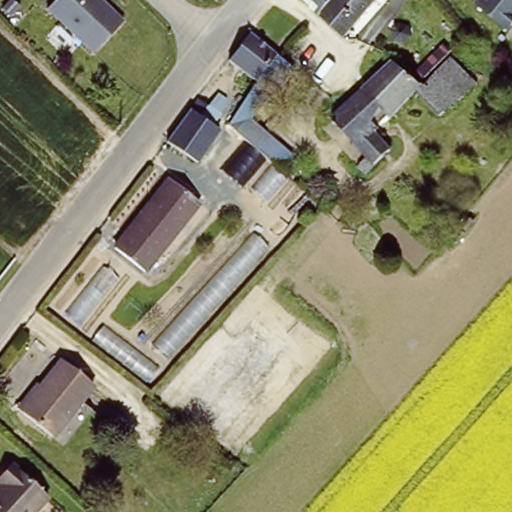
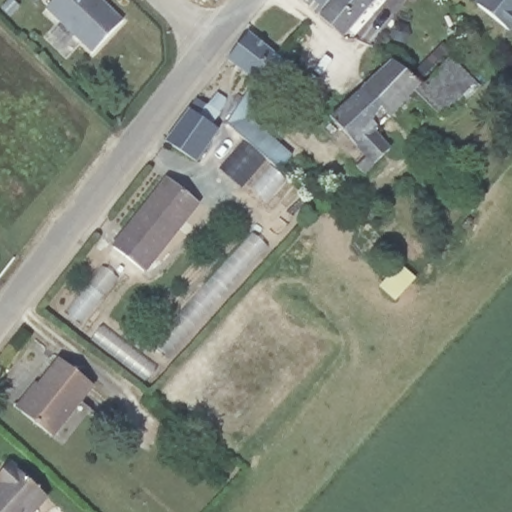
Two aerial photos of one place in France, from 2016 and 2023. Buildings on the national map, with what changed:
unchanged [(92,57),(46,12),(58,0),(92,0),(120,27),(92,57)]
unchanged [(216,0),(215,2),(213,0),(216,0)]
unchanged [(299,0),(320,0),(310,11),(299,0)]
unchanged [(360,7),(336,34),(315,14),(327,0),(380,0),(367,14),(360,7)]
unchanged [(477,10),(484,0),(512,0),(512,35),(510,37),(477,10)]
unchanged [(254,83),(230,63),(253,37),(275,56),(254,83)]
unchanged [(230,126),(242,97),(254,83),(275,56),(294,71),(242,136),(230,126)]
unchanged [(420,89),(380,124),(397,144),(370,167),(363,160),(372,152),(337,112),(395,56),(422,84),(450,56),(460,67),(476,84),(465,94),(442,114),(420,89)]
unchanged [(209,106),(203,115),(222,127),(200,164),(190,156),(170,142),(199,100),(209,106)]
unchanged [(292,156),(280,169),(242,136),(252,124),(292,156)]
unchanged [(202,205),(149,271),(115,242),(167,177),(202,205)]
unchanged [(22,415),(15,407),(39,378),(47,386),(67,365),(97,391),(51,441),(22,415)]
unchanged [(42,512),(0,512),(0,497),(5,491),(0,487),(14,472),(50,503),(42,512)]

